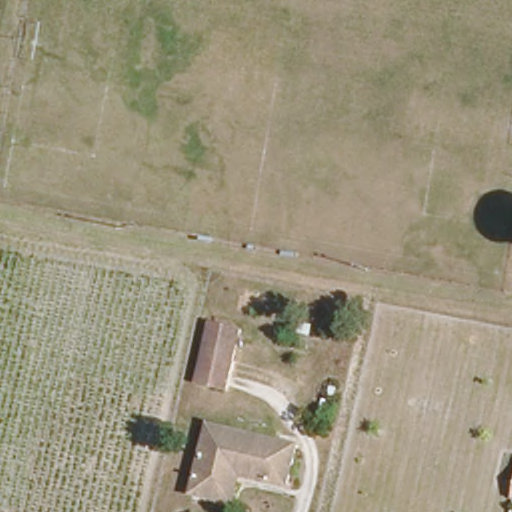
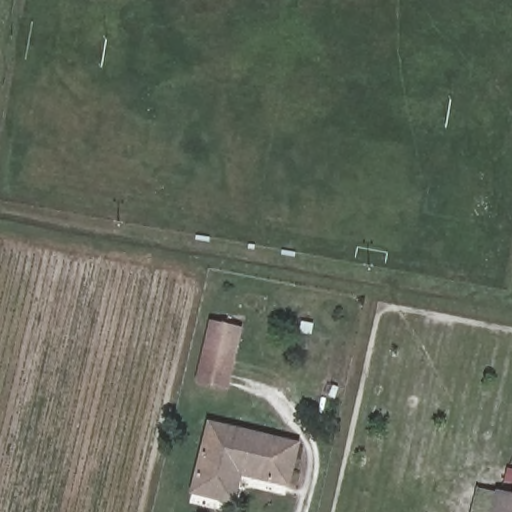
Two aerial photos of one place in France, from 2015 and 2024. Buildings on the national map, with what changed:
unchanged [(243,322),(228,381),(199,373),(214,316),(243,322)]
unchanged [(231,470),(226,498),(197,492),(211,423),(252,432),(242,472),(231,470)]
unchanged [(252,432),(299,440),(290,482),(242,472),(252,432)]
new [(477,487),(495,491),(496,487),(512,489),(512,512),(471,512),(477,487)]

